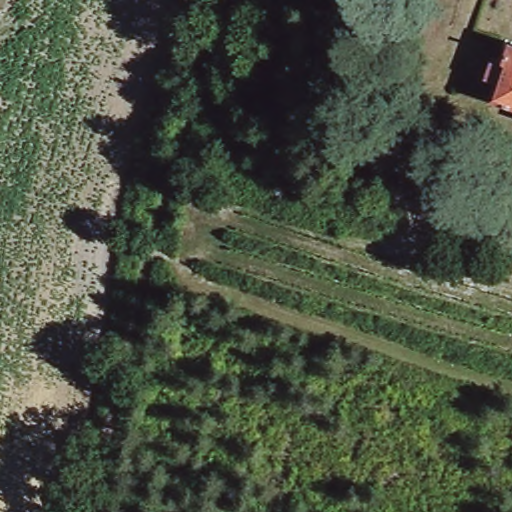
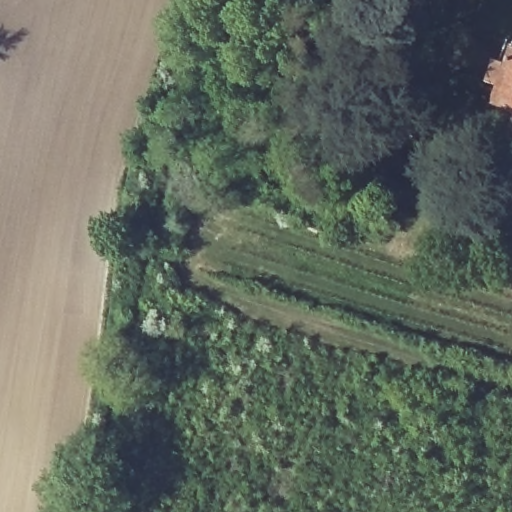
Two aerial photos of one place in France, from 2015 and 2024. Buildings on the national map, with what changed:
unchanged [(489,95),(493,77),(483,74),(487,55),(496,57),(501,37),(512,40),(512,102),(489,95)]
unchanged [(407,130),(409,119),(420,120),(419,132),(407,130)]

